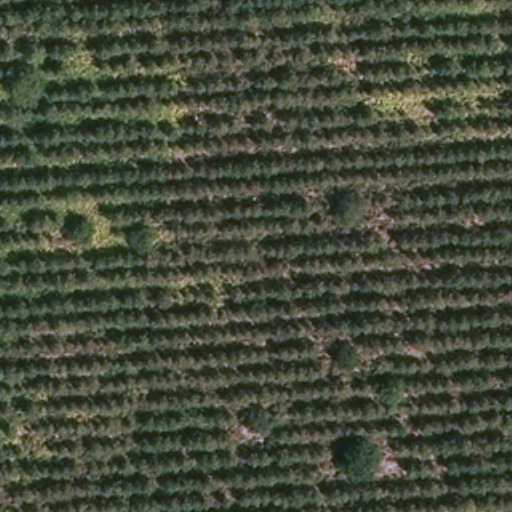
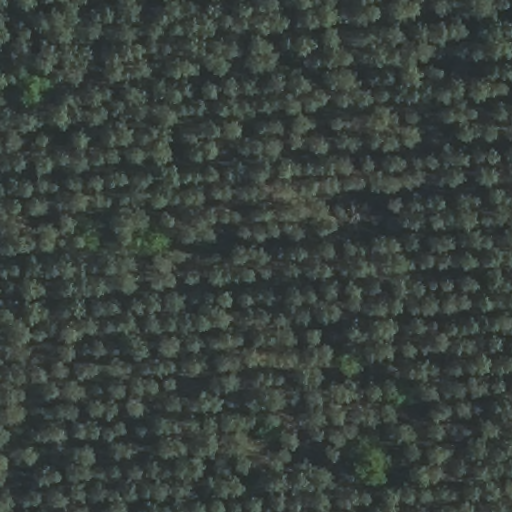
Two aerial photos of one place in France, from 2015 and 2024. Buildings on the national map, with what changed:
[]

